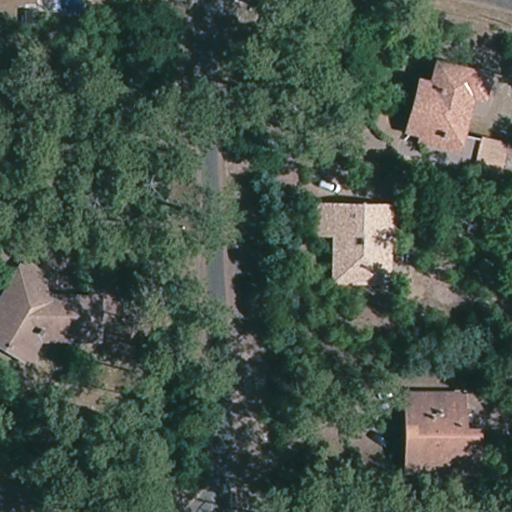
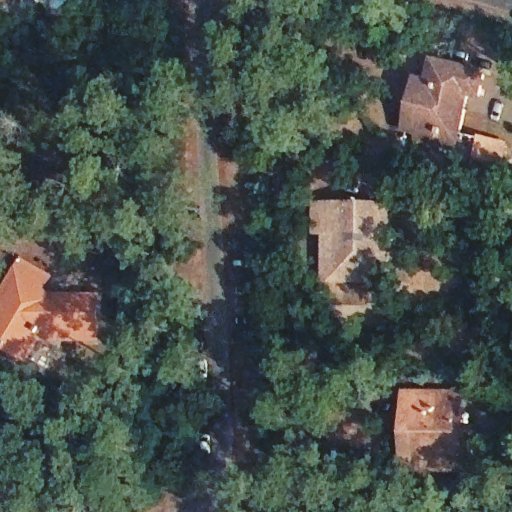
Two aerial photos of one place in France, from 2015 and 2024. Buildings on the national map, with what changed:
unchanged [(24,20),(24,9),(35,9),(35,19),(24,20)]
unchanged [(450,165),(455,146),(422,136),(425,128),(416,126),(409,124),(420,82),(427,85),(434,86),(440,62),(486,75),(481,95),(470,93),(459,134),(480,139),(502,145),(495,174),(494,176),(483,174),(471,170),(450,165)]
unchanged [(330,206),(379,209),(378,239),(366,240),(363,266),(343,265),(343,229),(329,224),(330,206)]
unchanged [(343,229),(343,265),(363,266),(366,240),(378,239),(377,281),(326,280),(329,224),(343,229)]
unchanged [(7,350),(0,346),(0,302),(15,279),(23,265),(49,280),(40,295),(49,303),(95,305),(93,340),(34,338),(27,350),(22,359),(7,350)]
unchanged [(407,454),(409,411),(401,411),(402,397),(451,396),(451,427),(467,428),(467,452),(407,454)]
unchanged [(467,468),(395,468),(395,413),(401,411),(409,411),(407,454),(467,452),(467,468)]

